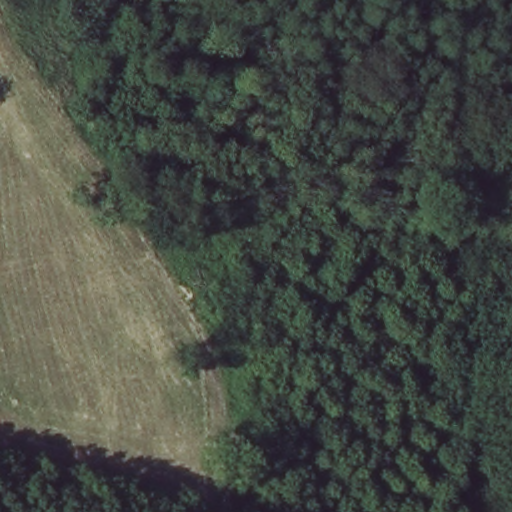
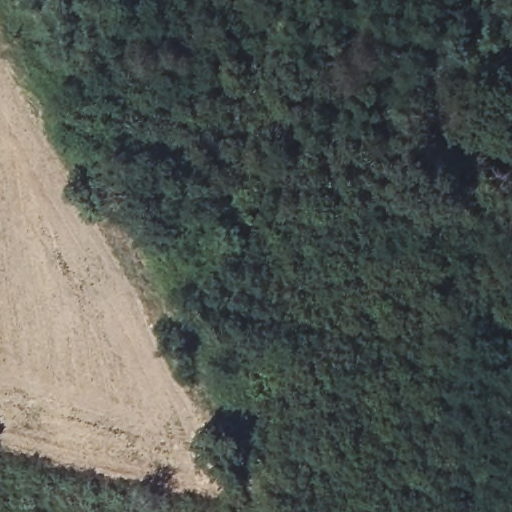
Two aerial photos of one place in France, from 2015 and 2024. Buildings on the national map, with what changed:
[]

